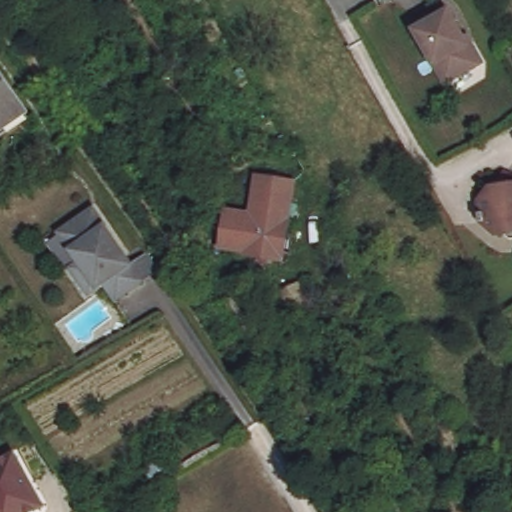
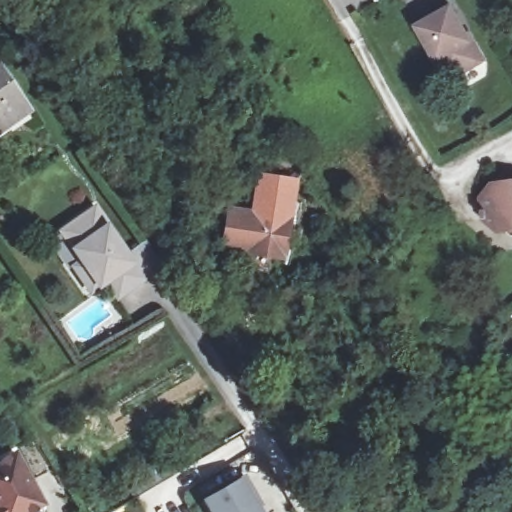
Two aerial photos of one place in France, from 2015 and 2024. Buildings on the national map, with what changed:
unchanged [(449,77),(418,24),(451,5),(482,58),(449,77)]
unchanged [(27,110),(0,129),(0,72),(27,110)]
unchanged [(478,209),(477,195),(503,167),(512,175),(512,225),(492,227),(479,217),(475,217),(475,210),(478,209)]
unchanged [(298,187),(287,256),(228,247),(234,212),(257,216),(263,181),(298,187)]
unchanged [(97,295),(85,277),(80,270),(88,264),(67,234),(102,211),(140,266),(152,257),(163,273),(150,282),(132,295),(124,301),(113,284),(97,295)]
unchanged [(28,512),(0,512),(0,463),(15,454),(42,504),(28,512)]
new [(211,512),(203,499),(242,477),(247,475),(265,506),(262,509),(263,512),(211,512)]

